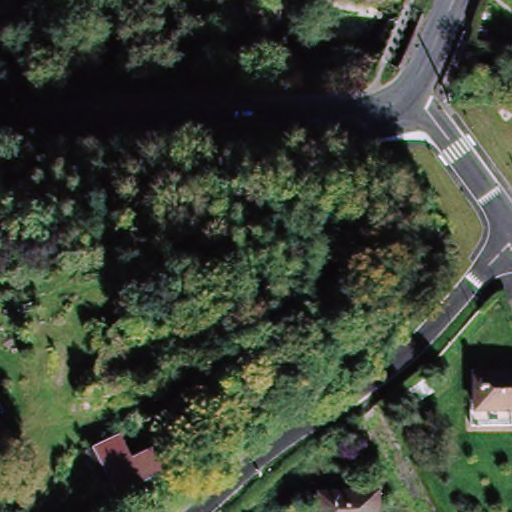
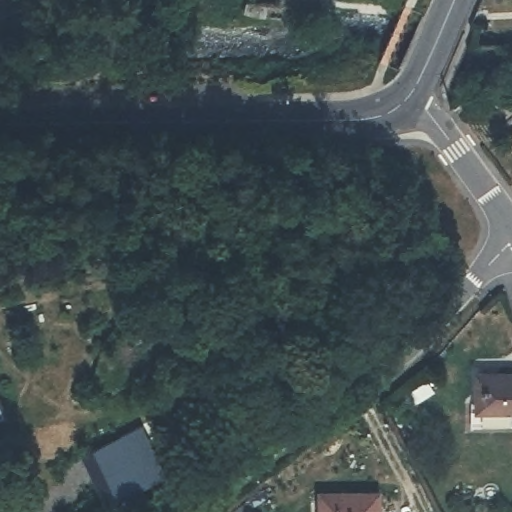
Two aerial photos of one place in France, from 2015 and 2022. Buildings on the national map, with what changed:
unchanged [(475,383),(512,378),(512,417),(480,421),(475,383)]
unchanged [(0,421),(0,399),(7,418),(0,421)]
unchanged [(159,477),(104,505),(82,459),(117,441),(128,463),(147,454),(159,477)]
unchanged [(382,512),(320,512),(320,510),(375,492),(382,512)]

